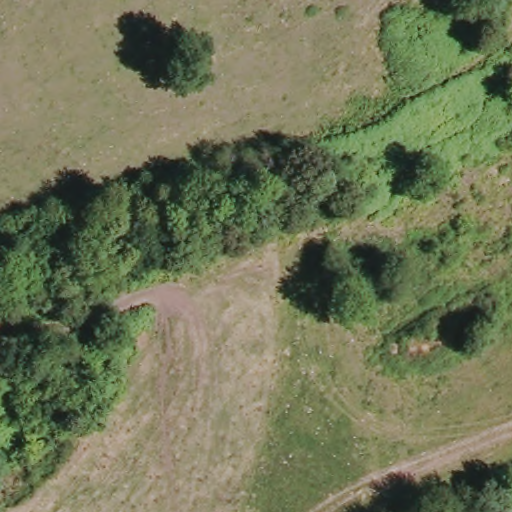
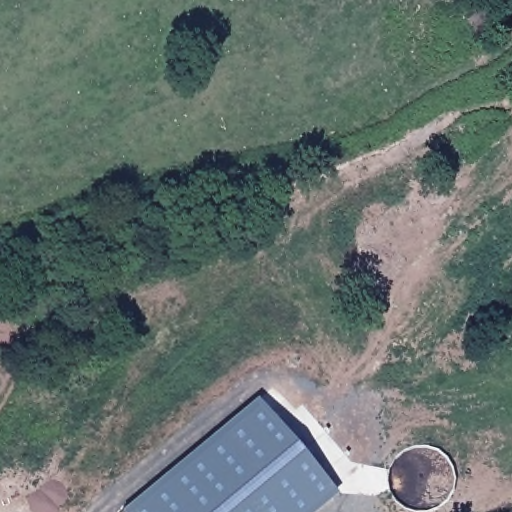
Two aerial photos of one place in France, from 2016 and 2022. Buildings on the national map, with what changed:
new [(271,394),(349,488),(320,512),(139,512),(134,507),(271,394)]

